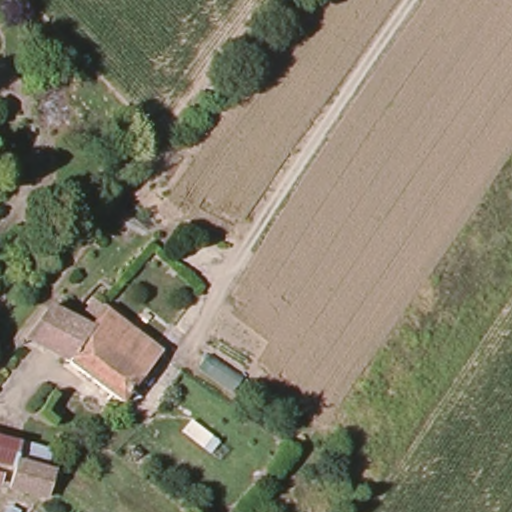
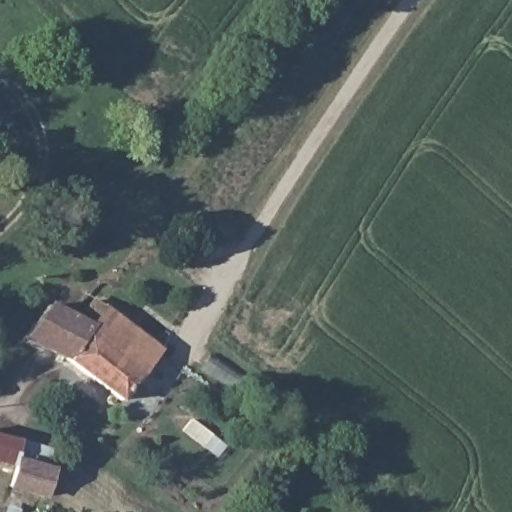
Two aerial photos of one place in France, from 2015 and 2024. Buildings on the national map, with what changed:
unchanged [(84,324),(96,306),(108,315),(162,356),(126,405),(68,362),(30,342),(53,308),(84,324)]
unchanged [(17,445),(11,469),(0,467),(0,441),(17,445)]
unchanged [(54,475),(45,502),(7,491),(16,464),(54,475)]

